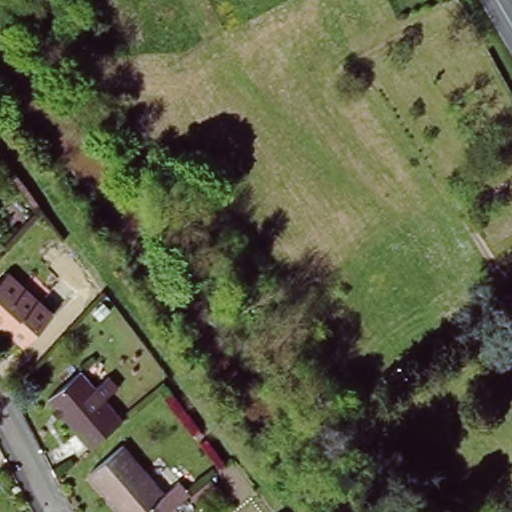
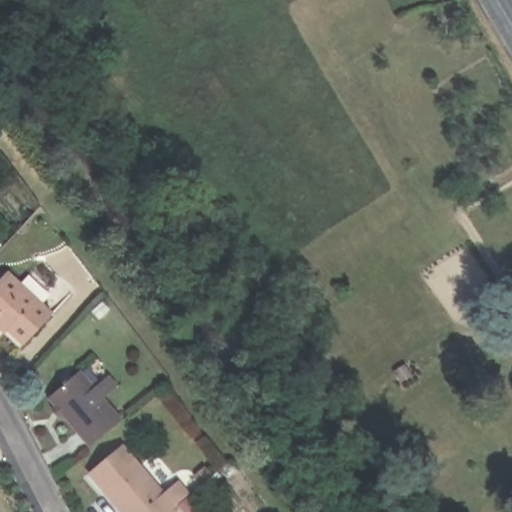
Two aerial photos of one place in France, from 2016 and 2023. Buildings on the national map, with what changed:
unchanged [(0,332),(0,281),(6,275),(52,316),(22,347),(7,333),(5,336),(0,332)]
unchanged [(48,396),(80,368),(93,384),(106,373),(115,384),(102,395),(120,417),(87,445),(48,396)]
unchanged [(124,512),(92,474),(125,447),(166,495),(180,482),(192,496),(173,512),(124,512)]

